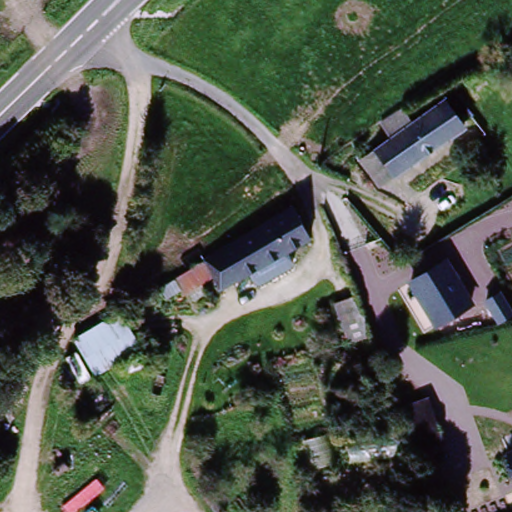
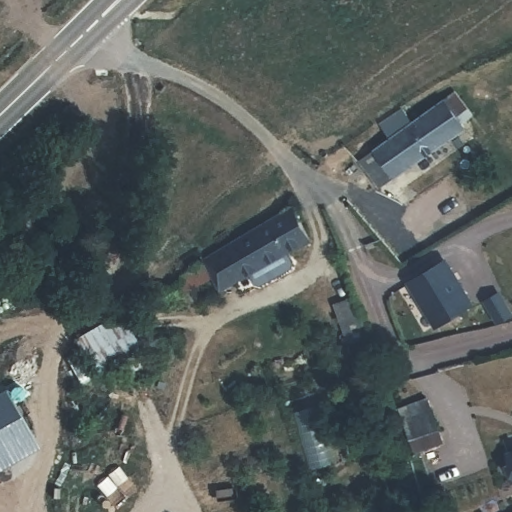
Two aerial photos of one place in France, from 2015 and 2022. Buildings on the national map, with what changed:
unchanged [(477,111),(468,116),(474,125),(376,186),(361,162),(393,142),(384,127),(408,112),(417,127),(467,96),(477,111)]
unchanged [(173,289),(165,274),(202,254),(296,200),(310,236),(215,287),(211,277),(175,294),(173,289)]
unchanged [(446,259),(475,305),(435,330),(405,283),(446,259)]
unchanged [(119,315),(138,349),(96,373),(77,339),(119,315)]
unchanged [(346,357),(342,335),(355,333),(360,354),(346,357)]
new [(0,470),(0,397),(6,393),(39,448),(0,470)]
unchanged [(441,441),(412,452),(395,407),(424,396),(441,441)]
unchanged [(504,457),(512,454),(512,474),(504,457)]

